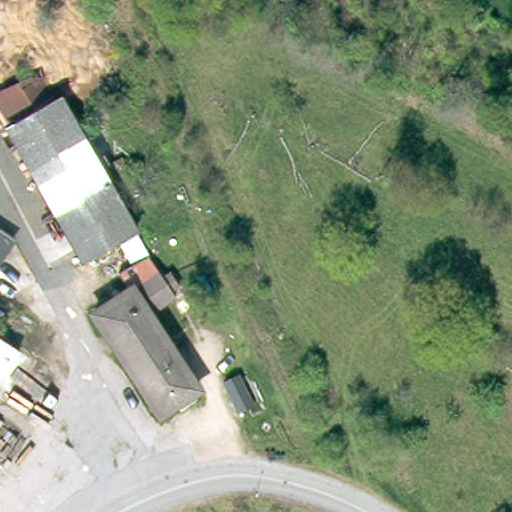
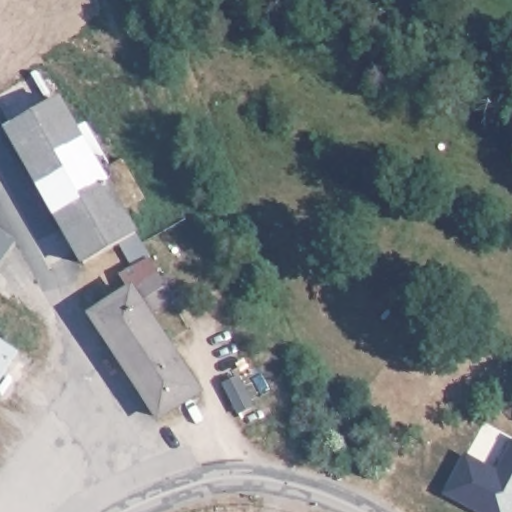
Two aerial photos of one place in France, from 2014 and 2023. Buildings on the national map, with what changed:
demolished [(27,8),(18,4),(20,0),(30,0),(27,8)]
demolished [(63,13),(32,0),(68,0),(63,13)]
unchanged [(123,273),(115,257),(110,249),(80,266),(5,129),(52,105),(94,178),(116,166),(135,203),(115,214),(132,247),(140,262),(123,273)]
unchanged [(0,251),(0,229),(10,236),(0,251)]
unchanged [(89,314),(155,275),(172,300),(147,313),(196,388),(172,401),(152,414),(146,409),(89,314)]
unchanged [(0,384),(0,342),(19,353),(0,384)]
new [(458,471),(467,457),(480,465),(497,474),(512,448),(512,512),(476,512),(466,506),(445,494),(458,471)]

